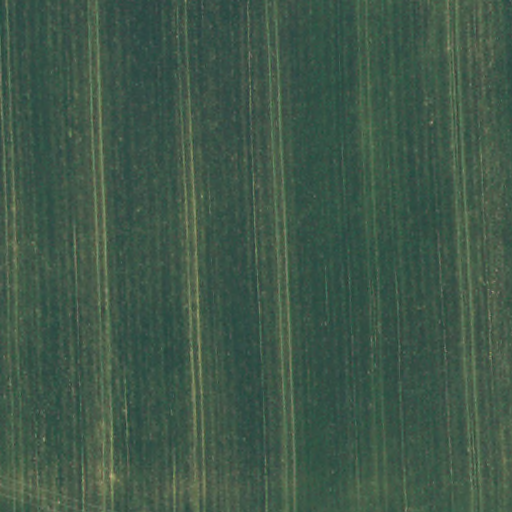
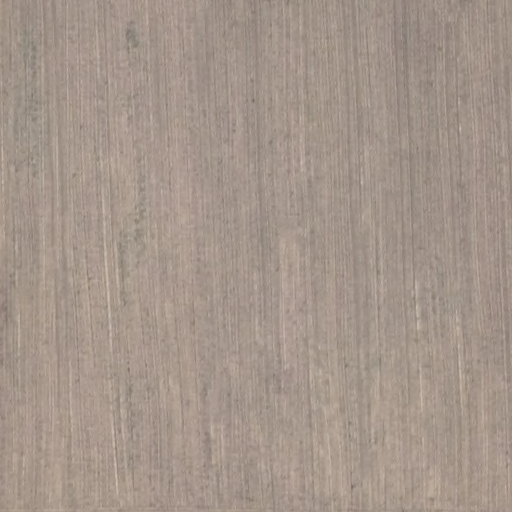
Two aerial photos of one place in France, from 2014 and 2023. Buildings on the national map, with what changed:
[]

